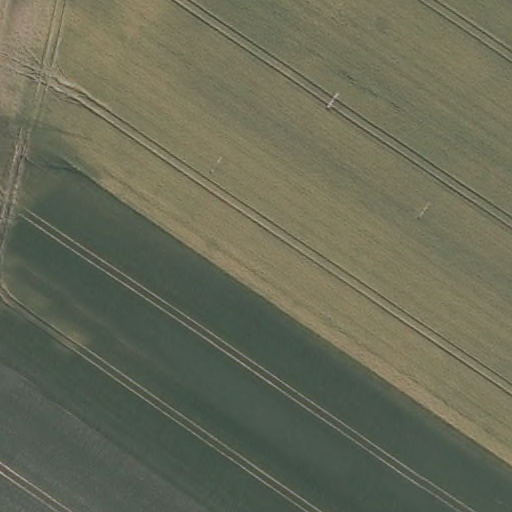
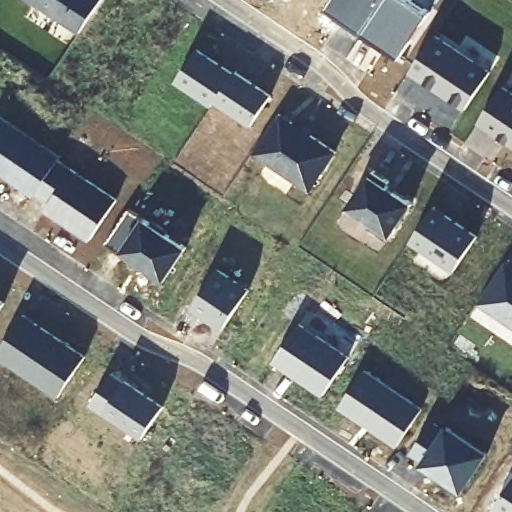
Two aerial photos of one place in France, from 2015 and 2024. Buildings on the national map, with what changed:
new [(37,0),(101,0),(82,30),(37,0)]
new [(402,53),(330,6),(334,0),(412,0),(430,13),(402,53)]
new [(492,69),(465,109),(410,73),(437,32),(492,69)]
new [(234,71),(236,68),(272,93),(252,125),(214,100),(212,104),(176,81),(198,45),(234,71)]
new [(512,142),(480,120),(505,84),(512,88),(512,142)]
new [(337,150),(312,189),(255,150),(283,109),(337,150)]
new [(61,152),(59,155),(119,195),(92,239),(45,208),(51,199),(38,191),(36,194),(0,171),(0,113),(0,112),(61,152)]
new [(393,178),(389,185),(414,201),(391,235),(348,206),(373,166),(393,178)]
new [(479,234),(455,270),(410,242),(435,204),(479,234)]
new [(146,215),(187,245),(167,278),(125,250),(107,242),(130,205),(146,215)]
new [(512,322),(480,300),(508,258),(512,261),(512,322)]
new [(250,287),(225,327),(193,307),(218,265),(250,287)]
new [(6,302),(0,311),(0,298),(6,302)]
new [(87,356),(58,398),(0,355),(0,348),(25,311),(87,356)]
new [(351,356),(325,394),(274,362),(302,320),(351,356)]
new [(424,408),(400,446),(340,406),(365,366),(424,408)]
new [(164,406),(142,438),(92,403),(113,371),(164,406)]
new [(490,449),(464,489),(422,462),(426,458),(411,452),(429,424),(442,432),(448,422),(490,449)]
new [(512,482),(512,512),(499,512),(495,509),(512,482)]

